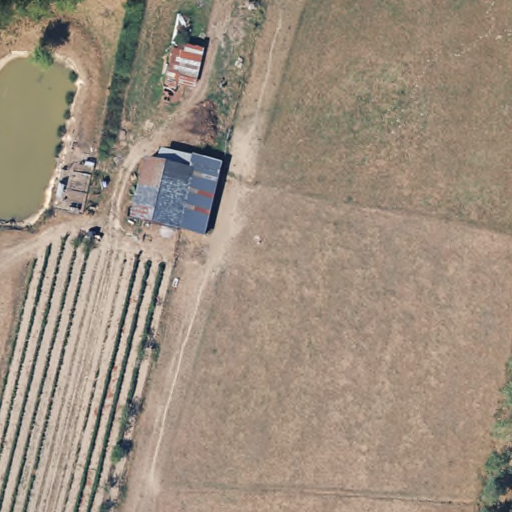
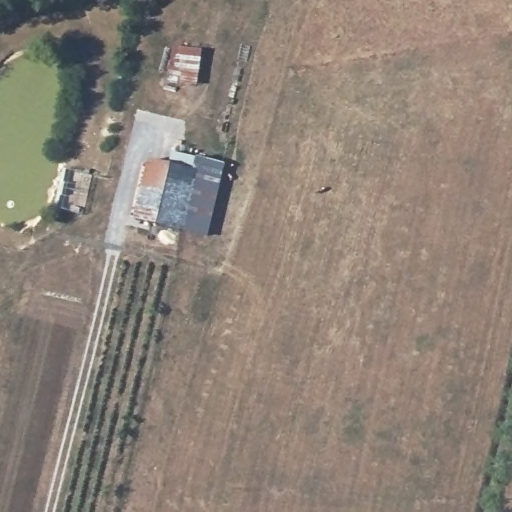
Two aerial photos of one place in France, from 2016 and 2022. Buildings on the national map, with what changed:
unchanged [(215,161),(200,233),(134,217),(145,158),(160,161),(163,149),(215,161)]

